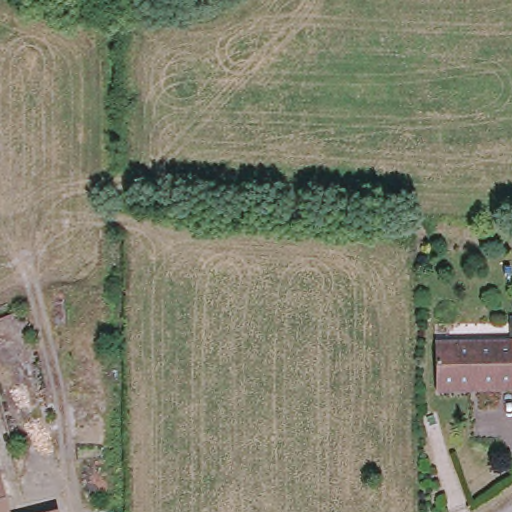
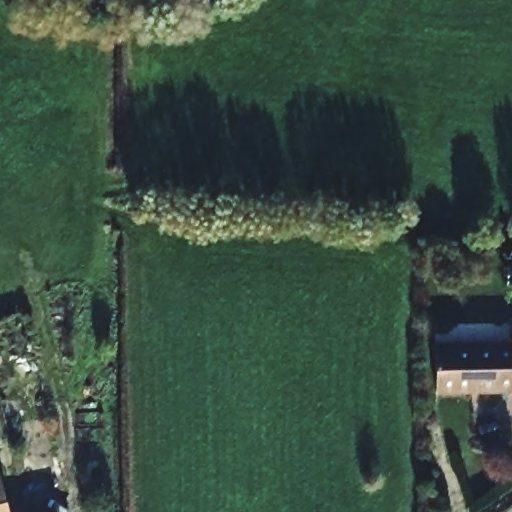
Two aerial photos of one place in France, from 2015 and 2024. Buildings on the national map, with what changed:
unchanged [(436,386),(436,339),(512,339),(512,387),(436,386)]
unchanged [(0,482),(8,512),(0,512),(0,482)]

